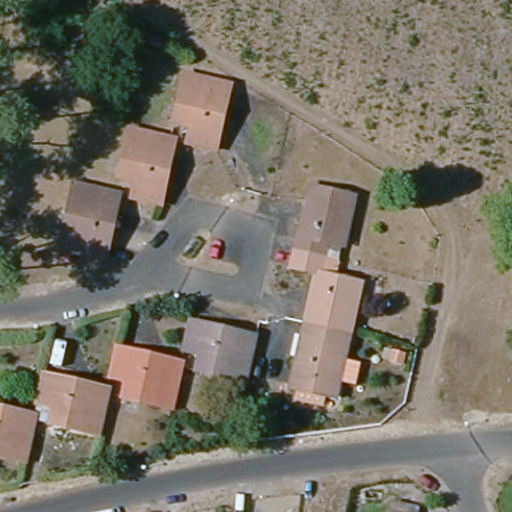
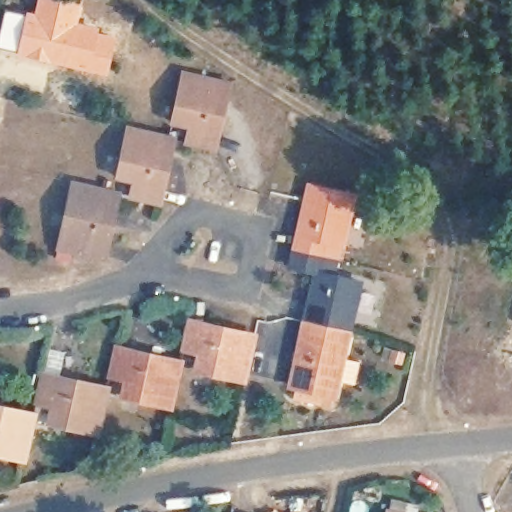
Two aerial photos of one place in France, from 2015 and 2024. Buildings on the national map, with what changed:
new [(26,10),(33,12),(36,0),(83,0),(78,21),(118,34),(107,76),(16,55),(17,51),(0,47),(0,29),(4,10),(25,14),(26,10)]
unchanged [(207,154),(178,148),(182,131),(165,127),(175,79),(220,89),(213,123),(210,137),(207,154)]
unchanged [(151,209),(123,203),(123,202),(127,187),(109,183),(120,134),(166,144),(158,178),(155,193),(151,209)]
unchanged [(95,264),(51,254),(66,189),(110,198),(102,233),(98,247),(95,264)]
unchanged [(292,339),(294,332),(305,282),(281,276),(284,260),(288,247),(300,196),(346,208),(335,256),(318,251),(315,267),(311,284),(351,294),(340,343),(338,351),(326,408),(279,396),(292,339)]
unchanged [(240,387),(193,375),(197,359),(180,355),(186,326),(204,330),(217,333),(251,342),(240,387)]
unchanged [(168,414),(119,402),(123,385),(107,381),(112,352),(131,357),(145,360),(178,368),(168,414)]
unchanged [(93,440),(46,428),(49,412),(33,407),(39,378),(57,382),(71,386),(104,394),(93,440)]
unchanged [(21,466),(0,461),(0,414),(30,421),(31,421),(21,466)]

